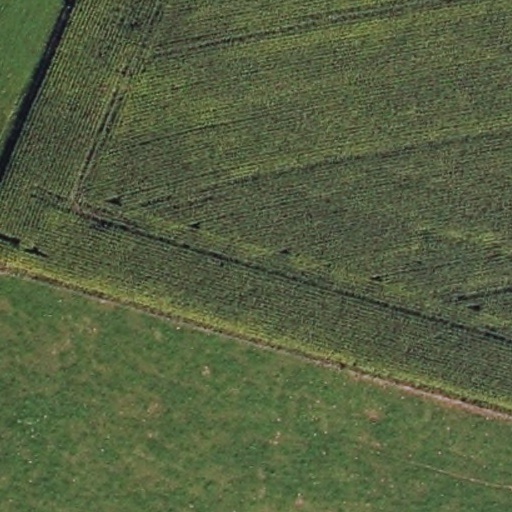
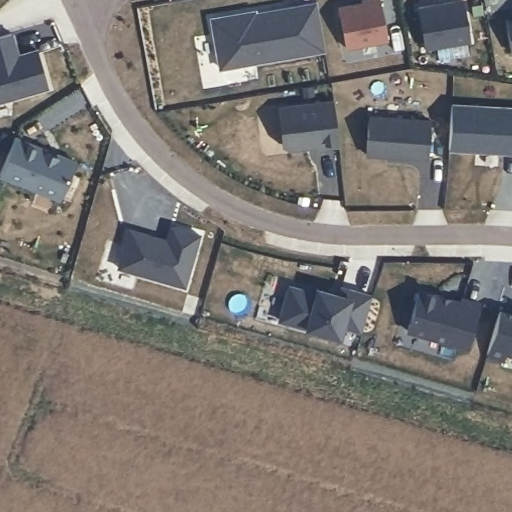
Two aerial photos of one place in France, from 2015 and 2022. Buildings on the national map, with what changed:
new [(257,8),(257,11),(316,0),(325,50),(220,69),(210,15),(257,8)]
new [(385,37),(345,44),(338,5),(360,1),(360,0),(378,0),(385,37)]
new [(438,0),(460,0),(467,39),(423,46),(416,4),(438,0)]
new [(508,48),(503,17),(512,16),(512,47),(508,48)]
new [(37,47),(48,85),(0,99),(0,36),(12,32),(18,53),(37,47)]
new [(332,99),(338,146),(317,150),(317,147),(288,150),(281,143),(278,105),(332,99)]
new [(447,145),(450,102),(512,105),(512,149),(447,145)]
new [(426,118),(423,157),(365,152),(367,114),(426,118)]
new [(60,199),(0,174),(0,169),(15,134),(76,159),(60,199)]
new [(201,234),(185,286),(117,266),(129,227),(165,236),(168,223),(201,234)]
new [(313,290),(315,285),(345,293),(346,286),(372,294),(361,333),(343,328),(340,338),(305,327),(304,327),(277,320),(287,282),(313,290)]
new [(460,298),(480,303),(467,349),(405,331),(419,286),(460,298)]
new [(512,312),(512,354),(506,352),(505,361),(486,357),(499,310),(512,312)]

